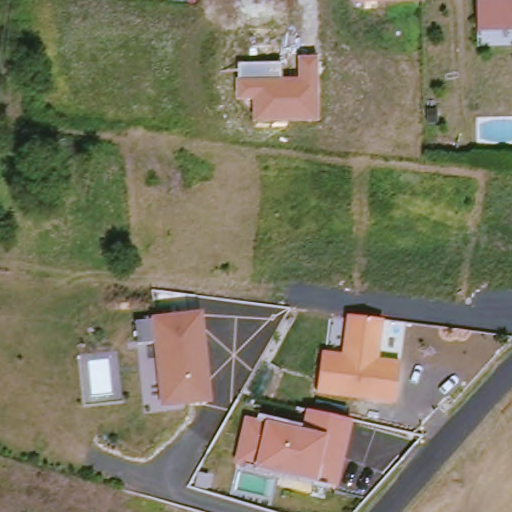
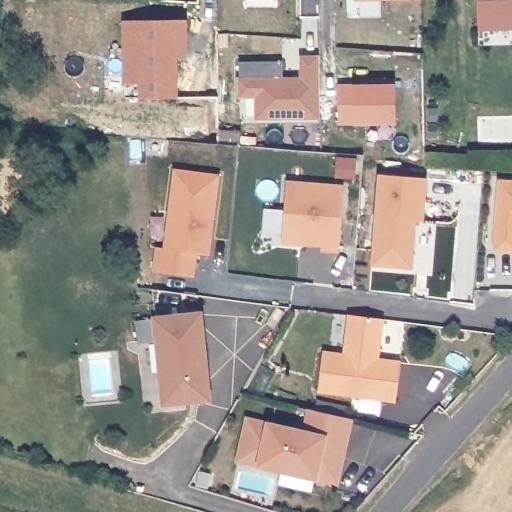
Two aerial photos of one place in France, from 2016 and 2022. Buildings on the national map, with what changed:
unchanged [(478,21),(477,0),(512,0),(512,27),(479,29),(479,21),(478,21)]
new [(124,21),(184,21),(186,55),(173,56),(173,97),(142,98),(141,84),(125,84),(124,21)]
unchanged [(281,61),(282,77),(299,76),(299,55),(318,55),(319,121),(253,125),(253,100),(236,99),(236,78),(239,78),(239,61),(281,61)]
new [(396,85),(396,124),(354,125),(339,125),(338,85),(354,84),(396,85)]
new [(173,169),(219,175),(210,255),(198,254),(196,279),(153,272),(156,247),(163,247),(173,169)]
new [(370,266),(378,174),(427,178),(425,221),(416,221),(412,269),(370,266)]
new [(286,180),(344,185),(339,254),(321,253),(321,247),(283,244),(286,180)]
new [(498,180),(512,181),(512,253),(493,252),(498,180)]
unchanged [(163,404),(157,342),(137,344),(135,320),(199,314),(208,400),(163,404)]
unchanged [(397,405),(319,395),(324,354),(345,356),(349,318),(386,321),(382,359),(403,363),(397,405)]
unchanged [(237,462),(246,420),(304,433),(309,410),(351,420),(344,451),(342,458),(336,484),(314,479),(280,472),(237,462)]

